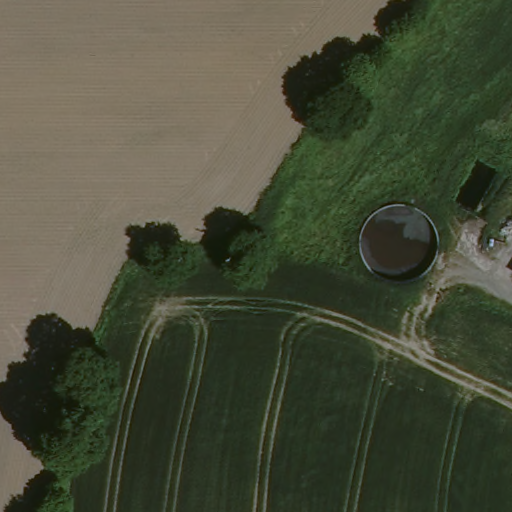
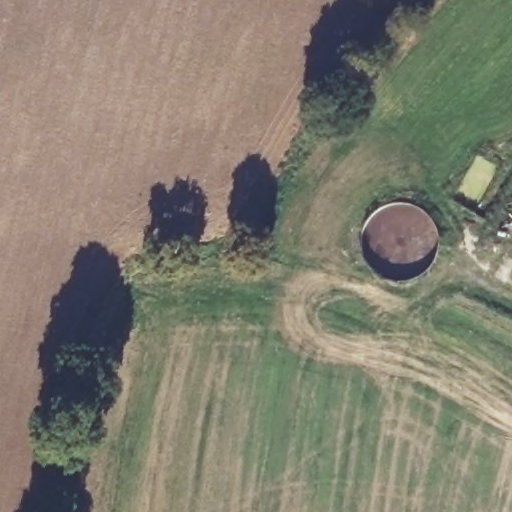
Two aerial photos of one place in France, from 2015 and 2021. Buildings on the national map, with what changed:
unchanged [(512,276),(512,279),(511,278),(512,276)]

